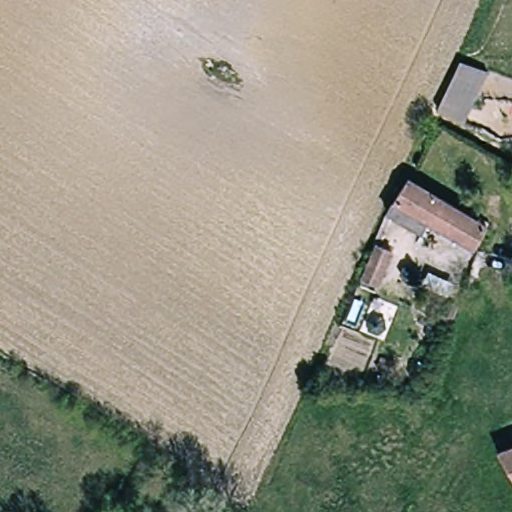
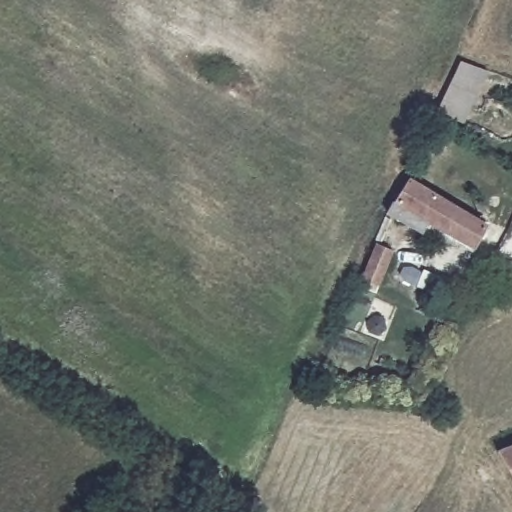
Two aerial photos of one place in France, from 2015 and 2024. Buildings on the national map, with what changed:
unchanged [(468,119),(444,105),(467,56),(492,68),(468,119)]
unchanged [(495,221),(480,244),(420,207),(414,218),(395,206),(412,179),(407,175),(409,170),(495,221)]
unchanged [(383,280),(367,273),(380,242),(397,249),(383,280)]
unchanged [(502,449),(512,445),(512,466),(502,449)]

